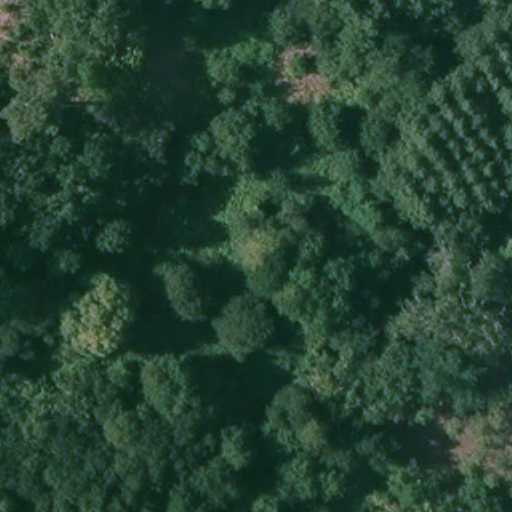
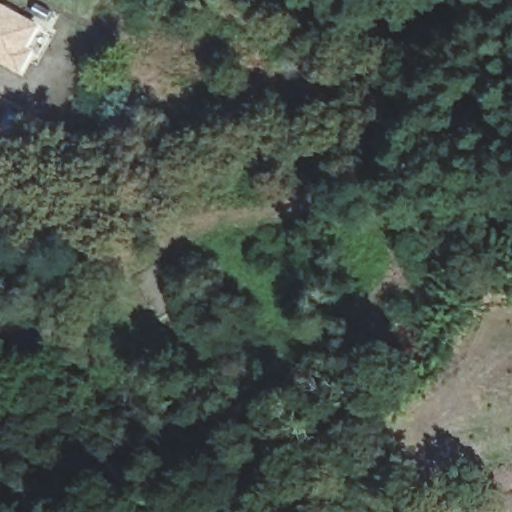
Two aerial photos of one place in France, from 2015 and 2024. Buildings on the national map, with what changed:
new [(36,25),(23,48),(28,51),(19,69),(0,59),(0,5),(36,25)]

